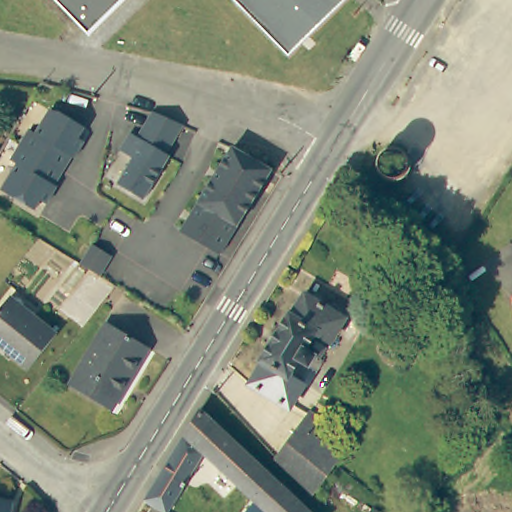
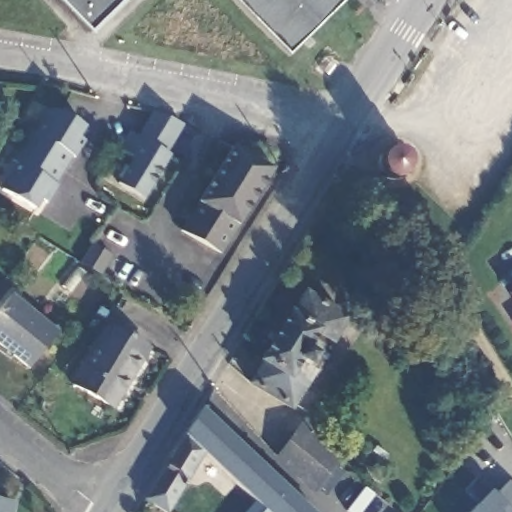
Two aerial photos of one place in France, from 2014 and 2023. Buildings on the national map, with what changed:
unchanged [(91,29),(62,0),(121,0),(91,29)]
unchanged [(289,51),(239,0),(341,0),(289,51)]
unchanged [(35,133),(50,110),(60,112),(84,126),(77,137),(83,141),(73,158),(71,156),(54,184),(56,186),(46,203),(40,200),(34,210),(1,190),(4,186),(0,184),(0,170),(4,163),(14,169),(17,164),(11,160),(0,153),(9,138),(20,144),(29,129),(35,133)]
unchanged [(155,163),(159,165),(133,209),(108,193),(123,168),(110,160),(120,143),(128,147),(143,121),(172,134),(155,163)]
unchanged [(272,169),(219,254),(180,230),(232,146),(272,169)]
unchanged [(92,243),(112,255),(100,275),(80,263),(92,243)]
unchanged [(10,295),(57,333),(29,368),(0,345),(0,308),(10,295)]
unchanged [(266,371),(294,324),(297,325),(310,304),(349,328),(335,351),(320,342),(310,359),(325,368),(319,378),(304,368),(294,385),(309,394),(294,418),(255,393),(268,372),(266,371)]
unchanged [(107,323),(148,348),(111,408),(71,383),(107,323)]
unchanged [(247,489),(237,480),(216,461),(203,448),(184,430),(200,404),(316,512),(243,512),(255,497),(247,489)]
unchanged [(311,407),(322,415),(311,430),(339,450),(334,457),(313,487),(277,453),(311,407)]
unchanged [(184,430),(203,448),(167,508),(144,495),(184,430)]
new [(466,490),(478,475),(493,490),(497,494),(507,479),(512,484),(512,512),(470,512),(478,503),(466,490)]
unchanged [(0,512),(0,501),(7,502),(5,512),(0,512)]
demolished [(374,512),(375,510),(378,512),(374,512)]

